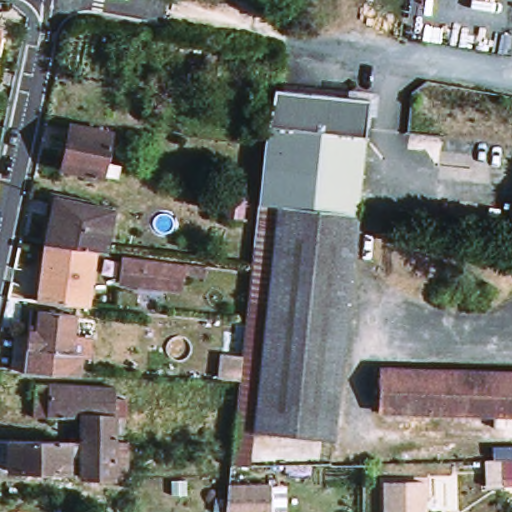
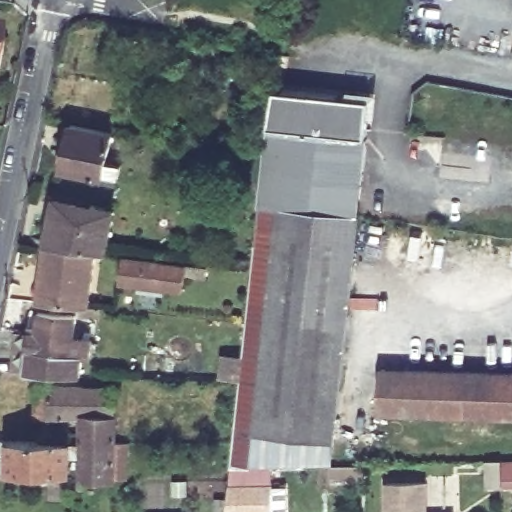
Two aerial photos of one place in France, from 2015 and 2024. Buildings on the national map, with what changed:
unchanged [(265,152),(275,94),(370,105),(358,220),(277,211),(258,209),(265,152)]
unchanged [(110,181),(97,179),(96,184),(56,175),(67,130),(106,139),(99,169),(112,172),(110,181)]
unchanged [(251,191),(247,224),(227,221),(230,189),(251,191)]
unchanged [(55,204),(113,215),(105,258),(96,256),(45,250),(55,204)]
unchanged [(227,363),(241,365),(245,329),(248,305),(250,287),(250,278),(258,209),(277,211),(254,437),(250,472),(230,472),(232,453),(238,402),(240,388),(225,387),(227,363)]
unchanged [(335,445),(254,437),(277,211),(358,220),(335,445)]
unchanged [(96,256),(89,312),(36,306),(45,250),(96,256)]
unchanged [(194,270),(206,272),(204,283),(184,280),(181,296),(120,288),(124,260),(185,269),(194,270)]
unchanged [(24,377),(29,335),(35,336),(39,316),(76,320),(71,360),(82,362),(80,380),(24,377)]
unchanged [(512,373),(512,417),(380,412),(381,368),(512,373)]
unchanged [(81,423),(36,421),(36,390),(115,395),(115,450),(80,449),(81,423)]
unchanged [(71,478),(0,477),(0,446),(71,448),(71,478)]
unchanged [(116,482),(80,482),(80,449),(115,450),(116,482)]
unchanged [(505,461),(506,488),(492,488),(491,461),(505,461)]
unchanged [(512,465),(512,489),(507,489),(506,465),(512,465)]
unchanged [(234,487),(276,486),(277,512),(231,512),(234,487)]
unchanged [(391,490),(430,489),(430,512),(392,512),(391,490)]

